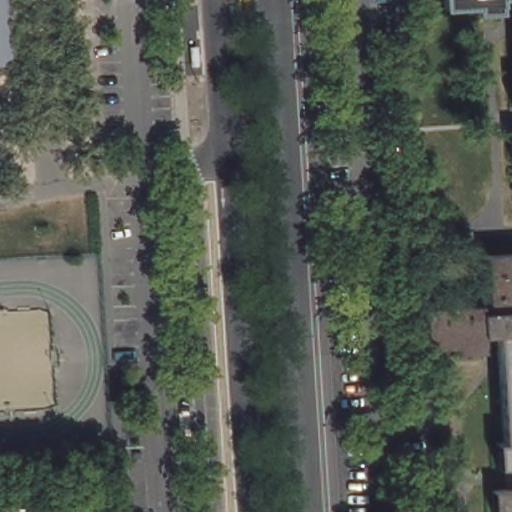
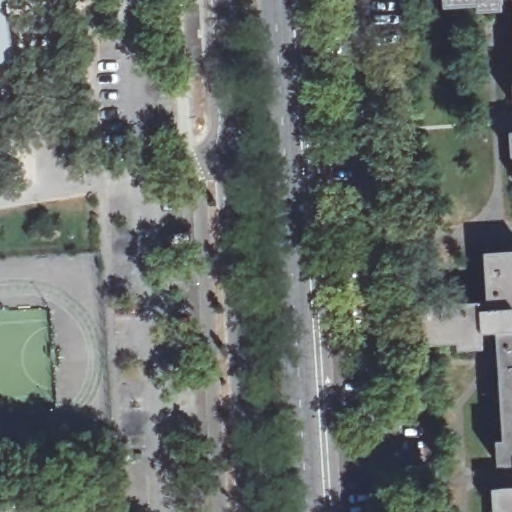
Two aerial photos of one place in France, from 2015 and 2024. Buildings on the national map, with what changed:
unchanged [(445,6),(445,0),(501,0),(501,3),(445,6)]
unchanged [(0,59),(0,47),(1,59),(0,59)]
unchanged [(484,255),(512,254),(512,307),(488,308),(484,255)]
unchanged [(512,307),(512,332),(497,333),(484,334),(484,342),(484,349),(459,351),(459,344),(427,346),(424,307),(481,305),(481,309),(488,308),(512,307)]
unchanged [(506,465),(499,466),(497,441),(504,440),(500,377),(497,333),(512,332),(512,465),(506,465)]
unchanged [(493,489),(501,489),(501,488),(508,488),(512,487),(512,512),(494,512),(493,489)]
unchanged [(28,512),(0,512),(0,507),(28,505),(28,512)]

